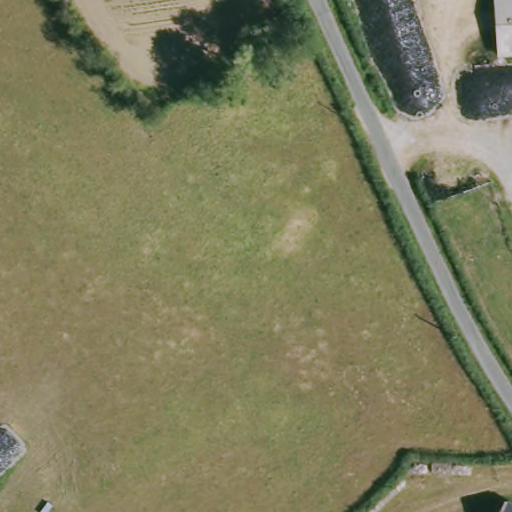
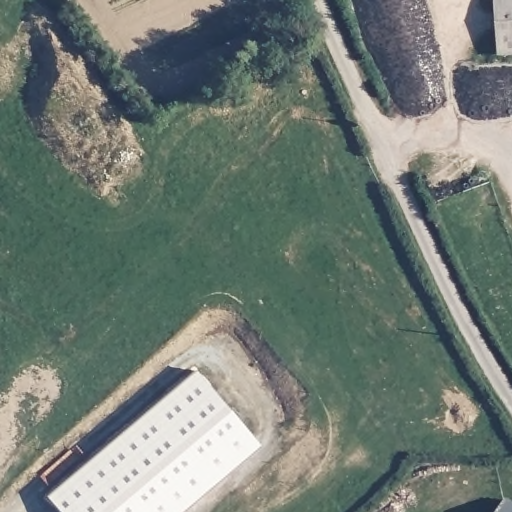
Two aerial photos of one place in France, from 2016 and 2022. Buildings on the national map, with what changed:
unchanged [(497,0),(512,0),(512,47),(499,47),(497,0)]
new [(197,369),(260,445),(180,512),(62,512),(47,494),(197,369)]
unchanged [(505,499),(512,501),(512,512),(498,512),(505,499)]

